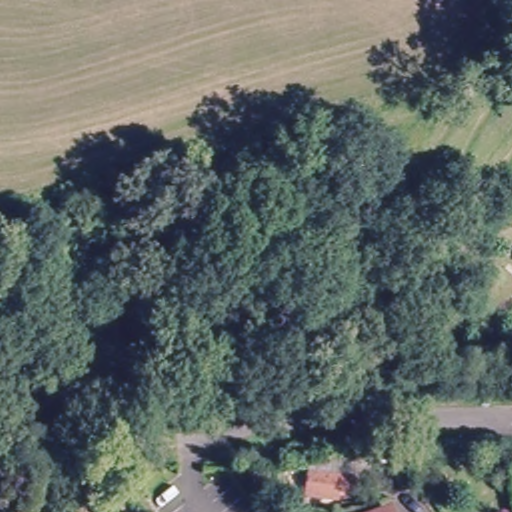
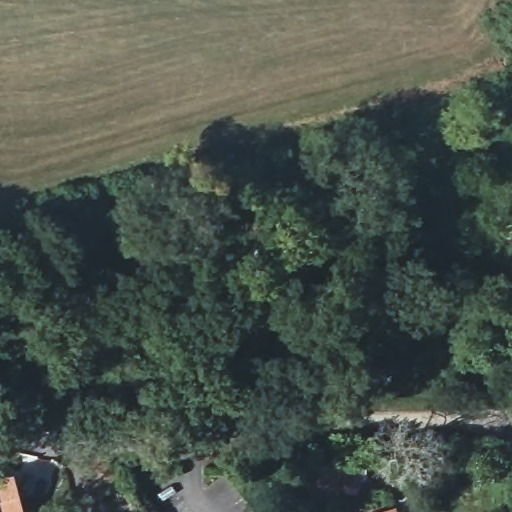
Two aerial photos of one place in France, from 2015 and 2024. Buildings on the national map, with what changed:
new [(12,474),(23,512),(0,512),(0,477),(12,474)]
unchanged [(299,474),(349,474),(349,487),(332,486),(333,497),(300,496),(299,474)]
unchanged [(387,509),(389,512),(381,512),(387,509)]

